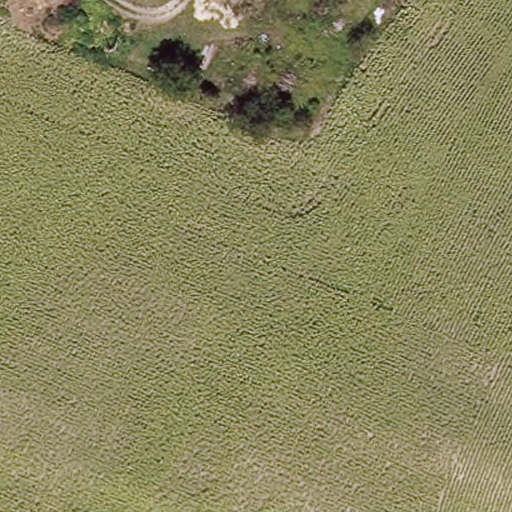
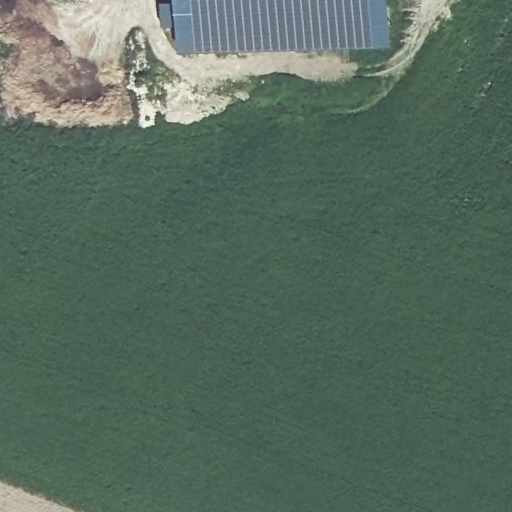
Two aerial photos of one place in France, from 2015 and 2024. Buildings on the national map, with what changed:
new [(394,44),(181,50),(180,0),(393,0),(394,44)]

